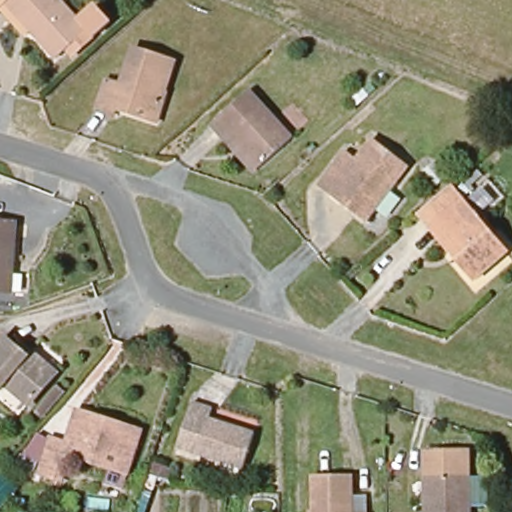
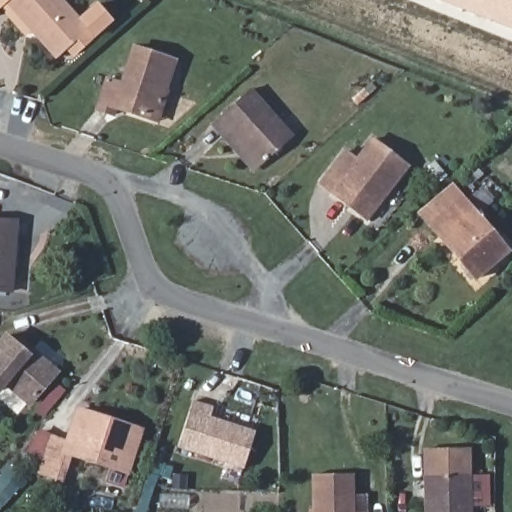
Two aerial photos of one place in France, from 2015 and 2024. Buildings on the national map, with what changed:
unchanged [(0,9),(0,0),(59,0),(72,15),(89,1),(103,18),(64,49),(58,42),(47,51),(28,28),(21,34),(0,9)]
new [(512,29),(438,0),(512,0),(512,29)]
unchanged [(123,80),(135,45),(172,57),(162,87),(158,86),(149,117),(113,106),(112,112),(95,107),(106,75),(123,80)]
unchanged [(251,89),(293,135),(263,163),(232,128),(227,133),(216,122),(251,89)]
unchanged [(346,150),(355,156),(370,136),(407,163),(366,217),(319,184),(346,150)]
unchanged [(432,216),(458,193),(504,244),(471,273),(455,254),(426,222),(432,216)]
unchanged [(17,220),(12,290),(0,289),(0,219),(15,220),(17,220)]
unchanged [(3,340),(23,356),(29,349),(55,372),(27,402),(1,382),(0,384),(0,343),(3,340)]
unchanged [(216,409),(213,416),(258,431),(246,466),(179,444),(194,401),(216,409)]
unchanged [(72,456),(63,482),(39,473),(51,438),(67,443),(78,409),(102,417),(140,430),(138,438),(125,474),(72,456)]
unchanged [(469,512),(427,512),(427,446),(469,446),(469,512)]
unchanged [(316,505),(315,470),(352,470),(352,511),(366,510),(366,512),(309,512),(309,505),(316,505)]

